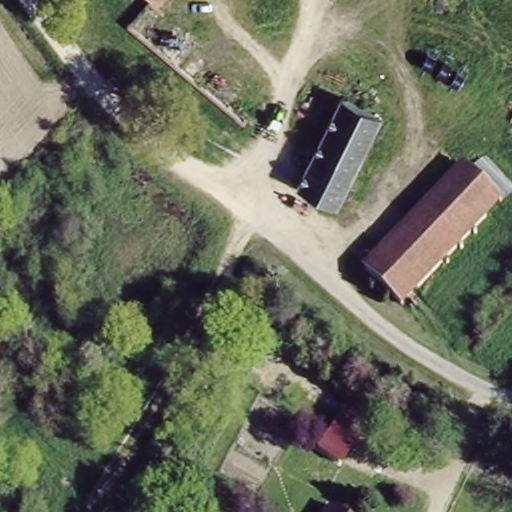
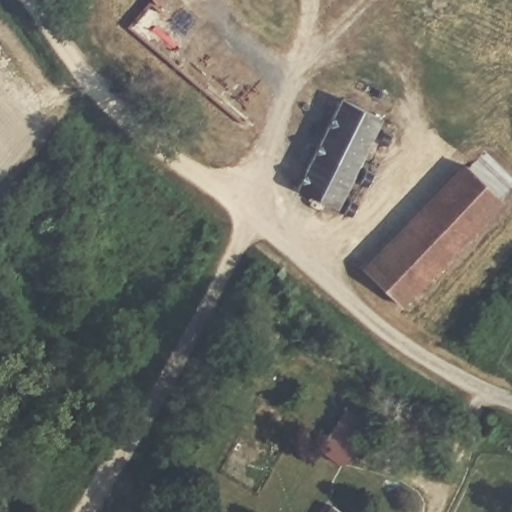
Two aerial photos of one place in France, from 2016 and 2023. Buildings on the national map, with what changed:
unchanged [(157,9),(150,0),(168,0),(157,9)]
unchanged [(338,104),(379,119),(339,213),(295,193),(338,104)]
unchanged [(360,270),(461,167),(503,202),(404,312),(360,270)]
unchanged [(394,381),(425,397),(415,416),(384,400),(394,381)]
unchanged [(323,512),(329,503),(342,512),(323,512)]

